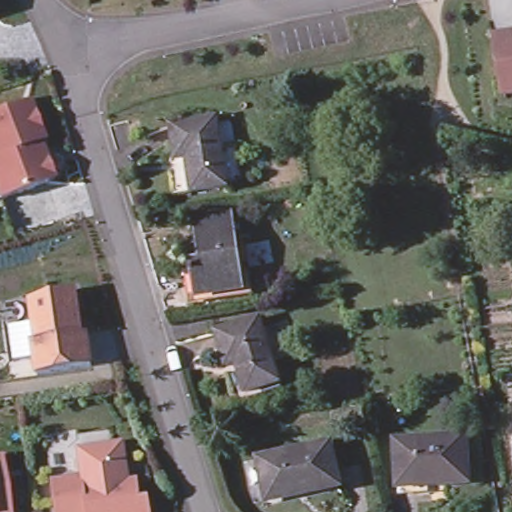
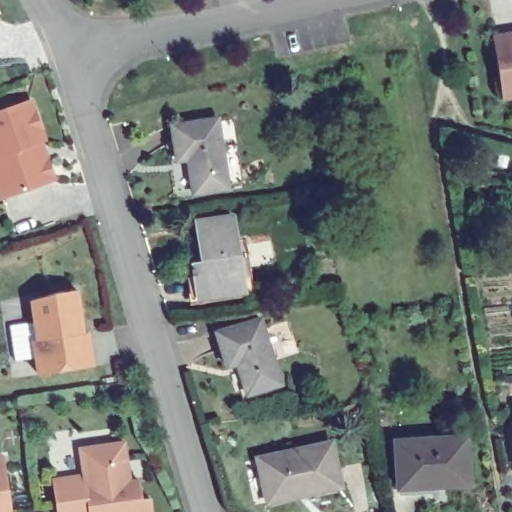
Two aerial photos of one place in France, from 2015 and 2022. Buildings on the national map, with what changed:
unchanged [(493,38),(512,35),(512,95),(501,97),(498,79),(493,38)]
unchanged [(30,99),(46,141),(42,143),(55,179),(0,199),(0,110),(30,99)]
unchanged [(170,157),(176,156),(172,121),(217,115),(227,185),(192,190),(175,192),(170,157)]
unchanged [(202,257),(197,217),(233,212),(243,287),(197,293),(195,272),(193,272),(193,271),(192,271),(192,270),(191,269),(191,268),(190,267),(191,266),(191,265),(192,264),(192,263),(193,263),(193,258),(202,257)]
unchanged [(30,340),(35,339),(29,300),(78,290),(84,334),(88,333),(94,367),(35,374),(30,340)]
unchanged [(240,384),(232,354),(219,357),(209,324),(223,319),(255,310),(274,374),(240,384)]
unchanged [(467,437),(470,483),(401,487),(397,443),(467,437)]
unchanged [(140,479),(143,499),(152,498),(154,512),(59,512),(55,479),(85,474),(82,447),(126,441),(132,480),(140,479)]
unchanged [(327,442),(338,482),(267,501),(255,459),(327,442)]
unchanged [(4,454),(12,512),(0,512),(0,455),(4,454)]

